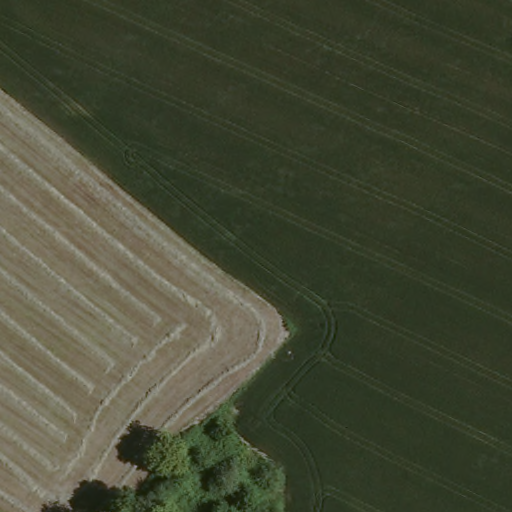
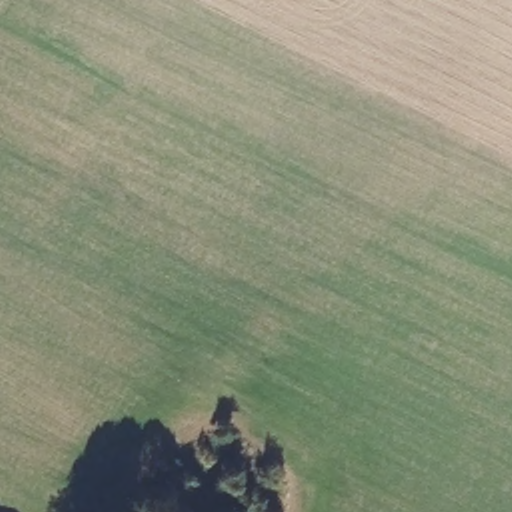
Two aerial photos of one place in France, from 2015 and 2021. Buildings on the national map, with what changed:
[]

